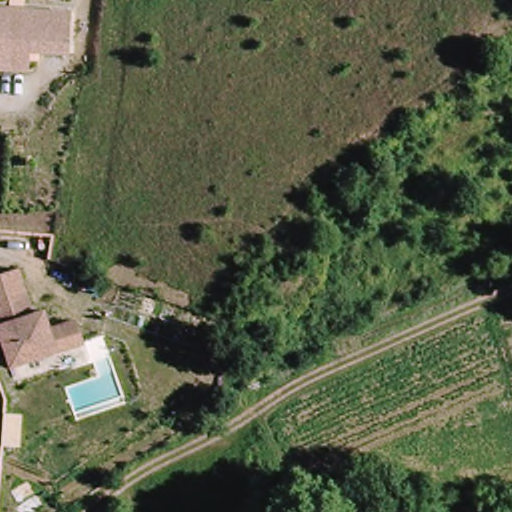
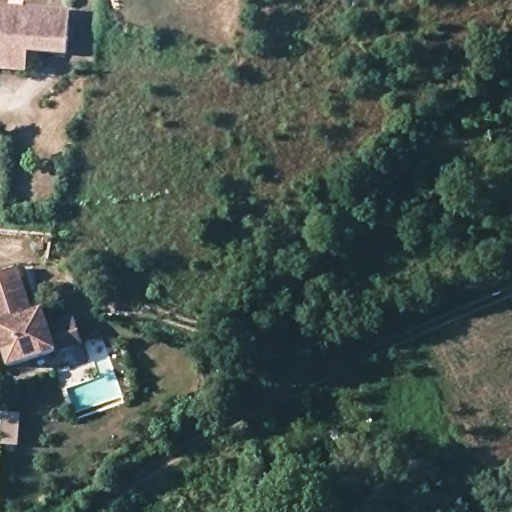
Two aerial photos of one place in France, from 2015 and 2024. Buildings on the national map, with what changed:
unchanged [(0,68),(0,8),(79,16),(74,57),(37,53),(35,72),(7,69),(0,68)]
unchanged [(78,347),(54,355),(8,370),(0,348),(0,276),(16,271),(30,316),(40,313),(46,332),(66,326),(72,328),(78,347)]

